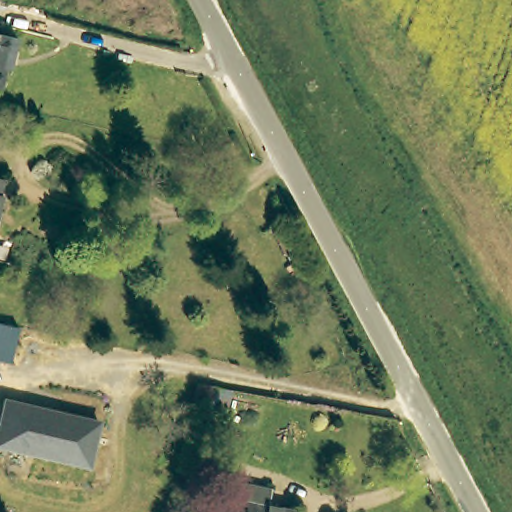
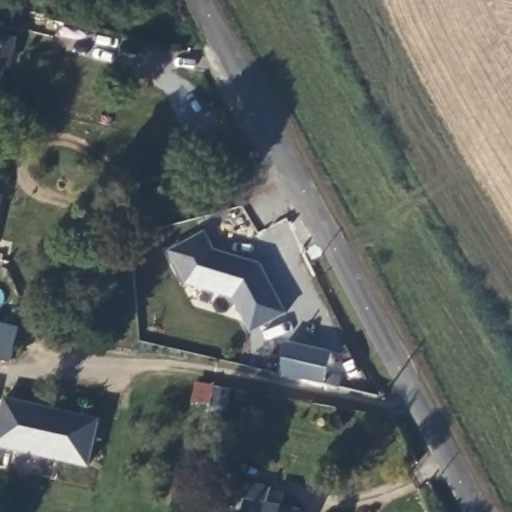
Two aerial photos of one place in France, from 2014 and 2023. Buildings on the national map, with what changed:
unchanged [(11,59),(8,57),(1,88),(0,88),(0,34),(16,38),(11,59)]
unchanged [(0,195),(0,180),(3,181),(0,195)]
unchanged [(0,209),(0,197),(3,197),(0,209)]
new [(251,332),(233,297),(187,284),(170,251),(205,233),(214,251),(261,263),(287,313),(251,332)]
unchanged [(9,363),(0,361),(0,325),(17,329),(9,363)]
new [(330,372),(342,375),(339,387),(327,385),(280,377),(286,342),(332,352),(330,372)]
unchanged [(98,421),(88,467),(0,447),(0,410),(3,398),(98,421)]
demolished [(0,510),(0,469),(8,472),(0,510)]
unchanged [(224,481),(271,492),(267,507),(284,512),(228,512),(230,506),(218,503),(224,481)]

